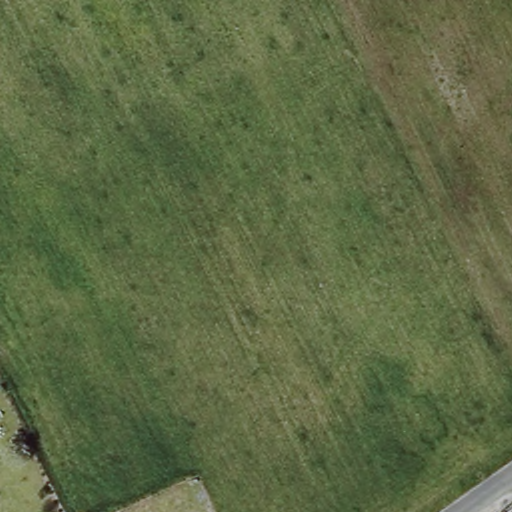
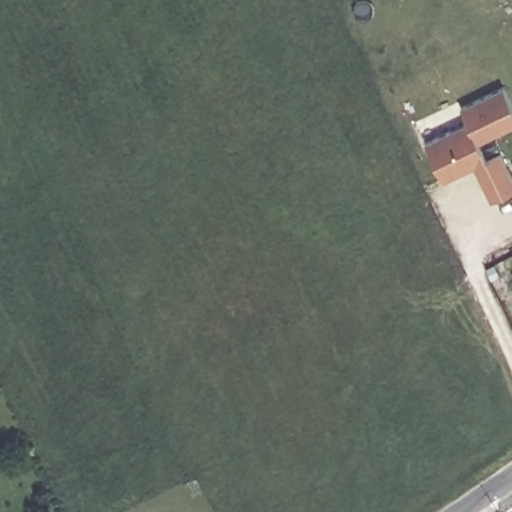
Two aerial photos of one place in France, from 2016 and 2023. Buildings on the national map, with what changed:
new [(471,124),(463,106),(503,86),(512,106),(512,125),(480,141),(488,159),(500,153),(512,179),(512,189),(490,199),(475,165),(445,179),(426,141),(471,124)]

